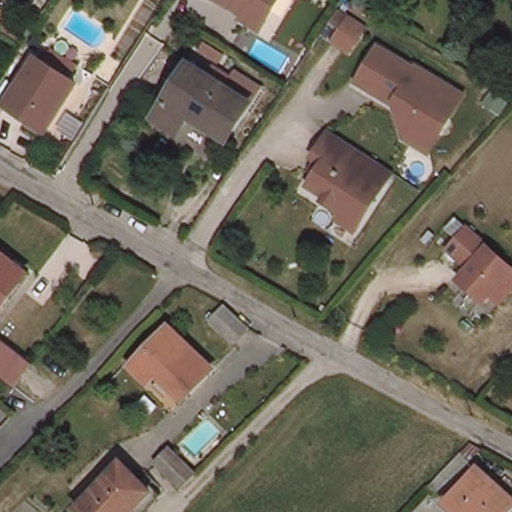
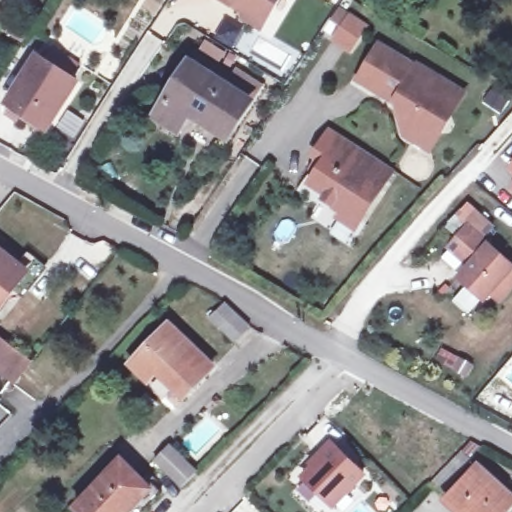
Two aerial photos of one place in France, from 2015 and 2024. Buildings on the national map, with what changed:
unchanged [(231,5),(223,0),(235,0),(231,5)]
unchanged [(279,2),(260,31),(244,20),(240,3),(235,0),(280,0),(279,2)]
unchanged [(360,47),(342,34),(348,26),(335,19),(345,5),(357,12),(375,24),(360,47)]
unchanged [(410,135),(405,112),(409,111),(407,103),(403,99),(400,100),(365,78),(387,44),(423,67),(425,65),(457,85),(470,94),(450,126),(434,150),(410,135)]
unchanged [(257,95),(232,131),(200,111),(189,128),(164,111),(200,57),(257,95)]
unchanged [(80,83),(53,129),(12,105),(42,60),(80,83)]
unchanged [(327,134),(390,176),(385,184),(353,232),(338,220),(340,214),(322,201),(324,196),(310,185),(315,177),(304,170),(312,159),(323,142),(327,134)]
new [(511,165),(512,164),(512,166),(511,165)]
new [(446,227),(470,201),(496,225),(481,242),(468,231),(460,239),(446,227)]
unchanged [(468,231),(512,270),(512,273),(485,304),(459,282),(470,270),(450,252),(468,231)]
unchanged [(0,252),(0,251),(30,274),(2,311),(0,310),(0,252)]
unchanged [(230,341),(210,321),(224,307),(244,327),(230,341)]
unchanged [(186,396),(164,372),(153,381),(137,365),(172,331),(212,370),(186,396)]
unchanged [(0,335),(32,360),(14,381),(0,371),(0,335)]
new [(310,467),(307,464),(330,441),(367,476),(333,510),(299,478),(310,467)]
unchanged [(187,483),(161,458),(175,444),(200,469),(187,483)]
unchanged [(476,512),(463,501),(460,506),(442,491),(474,455),(512,487),(512,493),(495,512),(476,512)]
unchanged [(85,512),(81,507),(129,461),(159,491),(138,512),(85,512)]

